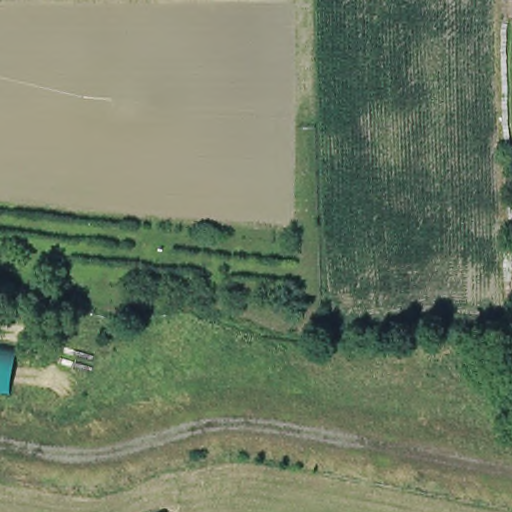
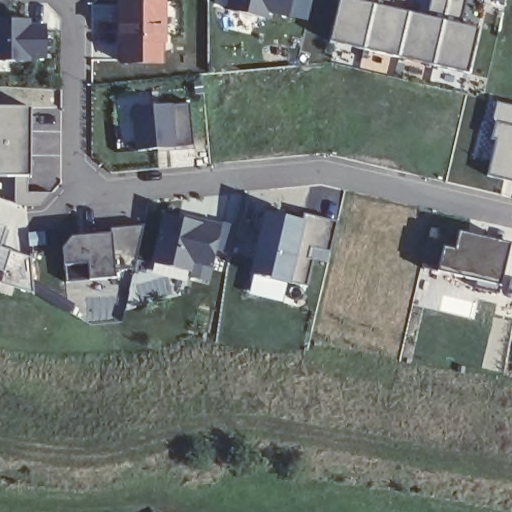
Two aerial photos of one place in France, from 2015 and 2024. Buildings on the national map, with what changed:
new [(117,64),(117,0),(163,0),(163,64),(117,64)]
new [(266,20),(225,10),(227,0),(292,0),(288,18),(268,13),(266,20)]
new [(427,15),(430,0),(465,0),(460,24),(475,26),(466,73),(330,40),(338,0),(353,0),(358,1),(358,0),(390,0),(389,8),(427,15)]
new [(29,63),(0,63),(0,21),(29,21),(29,24),(46,25),(46,59),(29,59),(29,63)]
new [(193,146),(175,148),(135,150),(131,108),(171,104),(190,103),(193,146)]
new [(488,177),(497,139),(494,139),(496,122),(494,121),(497,103),(512,107),(512,182),(488,177)]
new [(51,194),(39,205),(25,205),(14,202),(14,174),(0,174),(0,106),(27,105),(28,192),(51,194)]
new [(329,253),(309,248),(306,259),(309,259),(303,286),(251,274),(259,237),(251,234),(257,212),(282,218),(284,210),(336,222),(329,253)]
new [(211,269),(193,265),(191,272),(152,264),(161,216),(198,223),(199,219),(221,223),(211,269)]
new [(0,238),(0,225),(3,225),(0,238)]
new [(134,268),(113,269),(114,277),(88,279),(64,281),(63,266),(61,248),(69,238),(108,234),(106,229),(143,225),(134,268)]
new [(457,235),(458,232),(510,243),(501,287),(498,294),(474,289),(477,280),(436,271),(421,267),(430,228),(457,235)]
new [(0,282),(0,248),(28,258),(31,292),(0,282)]
demolished [(13,393),(0,391),(0,345),(21,349),(13,393)]

